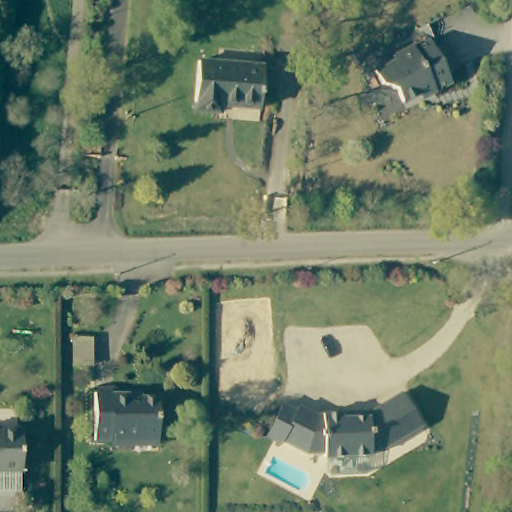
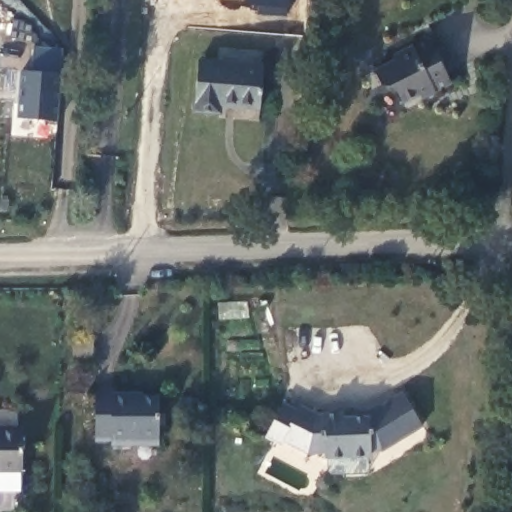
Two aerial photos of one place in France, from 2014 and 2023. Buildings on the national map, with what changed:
unchanged [(456,68),(447,73),(451,82),(433,92),(430,87),(401,102),(394,89),(381,83),(375,71),(390,63),(392,57),(413,46),(415,49),(427,41),(433,49),(444,44),(456,68)]
unchanged [(259,109),(221,107),(221,114),(194,113),(198,61),(263,66),(259,109)]
new [(13,117),(20,71),(64,76),(57,121),(13,117)]
unchanged [(154,445),(127,445),(127,454),(108,453),(108,444),(93,444),(93,393),(111,394),(111,397),(154,400),(154,445)]
unchanged [(422,431),(380,457),(369,457),(368,464),(352,463),(352,419),(363,419),(364,416),(403,395),(422,431)]
unchanged [(352,463),(321,462),(321,457),(306,456),(282,442),(279,447),(264,438),(284,400),(299,409),(303,404),(318,415),(343,414),(344,419),(352,419),(352,463)]
unchanged [(0,488),(0,426),(22,426),(23,468),(22,468),(22,488),(0,488)]

